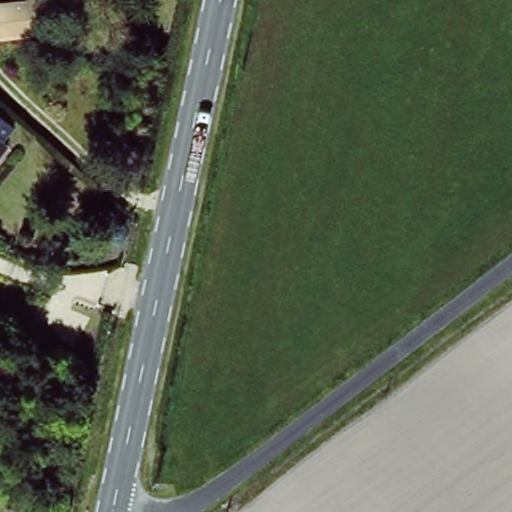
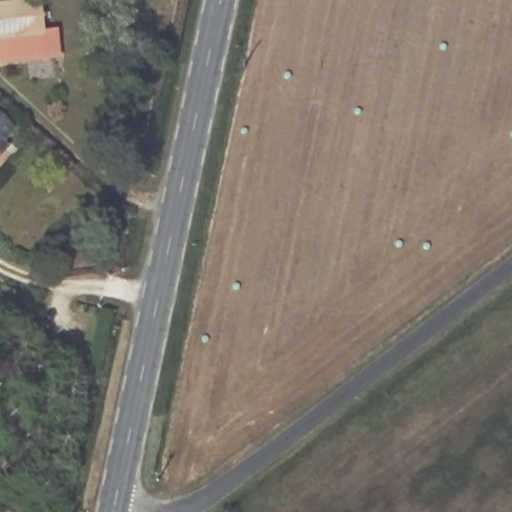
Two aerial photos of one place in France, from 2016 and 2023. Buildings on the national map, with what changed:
unchanged [(48,29),(0,36),(0,4),(26,0),(45,0),(48,29)]
new [(0,36),(48,29),(60,29),(62,57),(0,65),(0,36)]
unchanged [(6,137),(12,142),(0,155),(0,106),(18,124),(6,137)]

